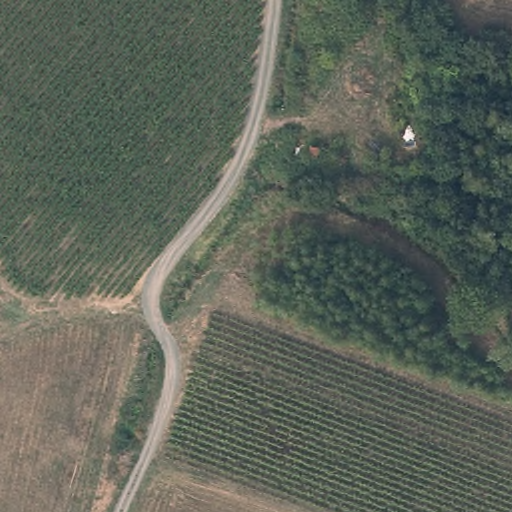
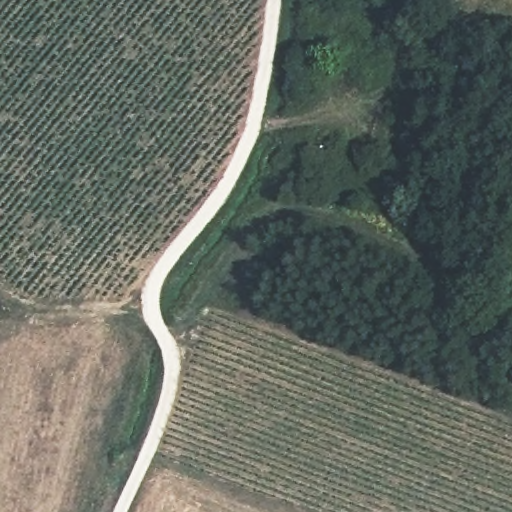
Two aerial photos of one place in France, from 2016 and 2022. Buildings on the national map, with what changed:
[]

